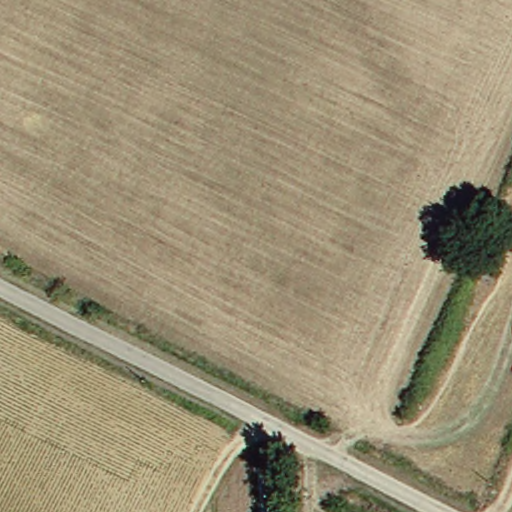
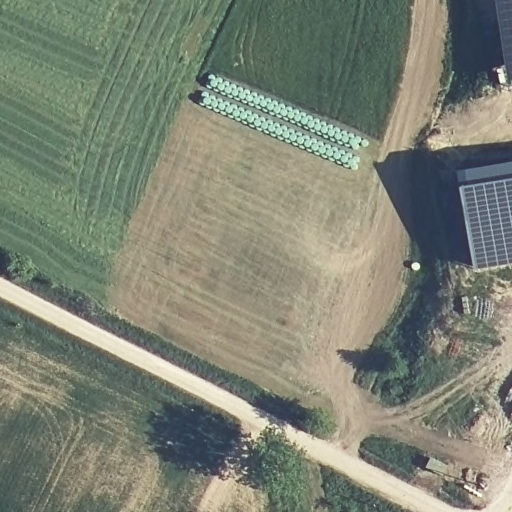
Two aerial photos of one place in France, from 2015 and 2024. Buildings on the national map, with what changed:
new [(512,0),(512,89),(510,89),(496,0),(512,0)]
new [(474,270),(460,170),(512,162),(512,264),(474,270)]

